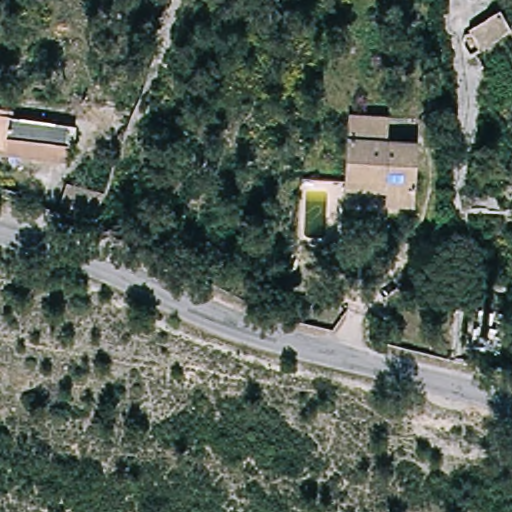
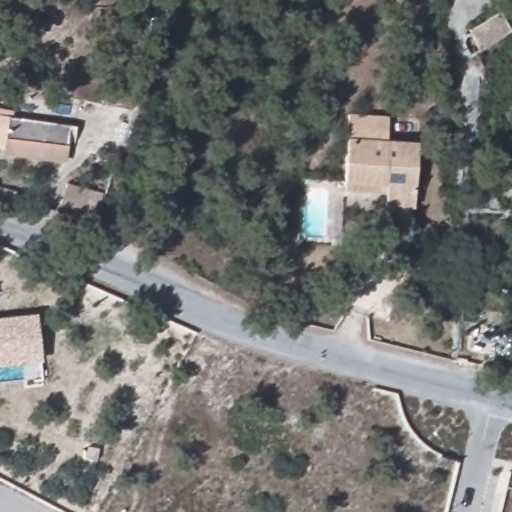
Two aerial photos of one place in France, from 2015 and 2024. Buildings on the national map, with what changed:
unchanged [(505,5),(512,16),(512,28),(485,51),(468,62),(465,25),(471,31),(505,5)]
unchanged [(46,165),(5,162),(5,152),(0,152),(0,113),(7,114),(7,120),(75,127),(72,154),(67,153),(65,166),(46,165)]
unchanged [(340,188),(345,119),(416,124),(410,213),(381,211),(382,199),(339,196),(340,188)]
unchanged [(104,154),(107,138),(127,141),(119,158),(104,154)]
unchanged [(63,211),(70,184),(102,192),(101,219),(63,211)]
new [(0,365),(0,317),(36,313),(41,361),(0,365)]

